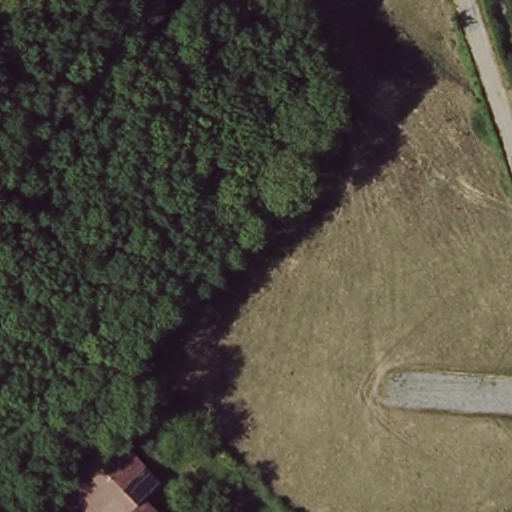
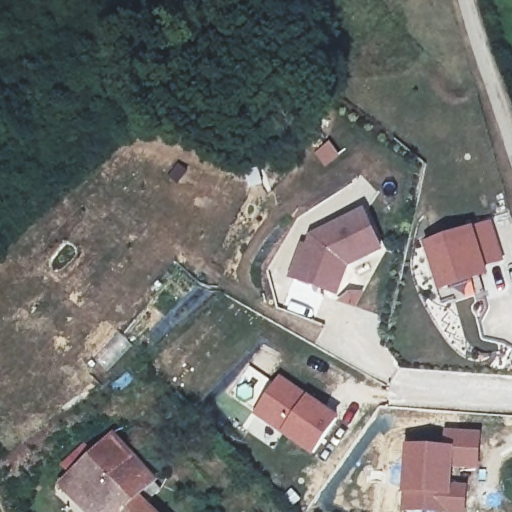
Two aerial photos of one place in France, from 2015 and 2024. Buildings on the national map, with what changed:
new [(301,242),(306,244),(309,233),(366,210),(385,252),(348,268),(338,297),(288,276),(301,242)]
new [(474,228),(494,222),(506,260),(487,266),(489,275),(441,290),(426,242),(474,228)]
new [(340,418),(314,455),(254,415),(281,376),(340,418)]
unchanged [(109,430),(182,497),(169,512),(96,512),(60,478),(109,430)]
new [(446,431),(483,433),(482,469),(454,466),(454,486),(469,486),(467,512),(408,512),(402,511),(403,492),(407,445),(444,447),(446,431)]

